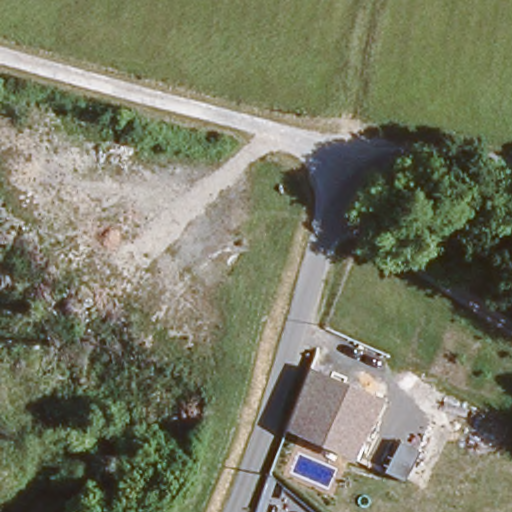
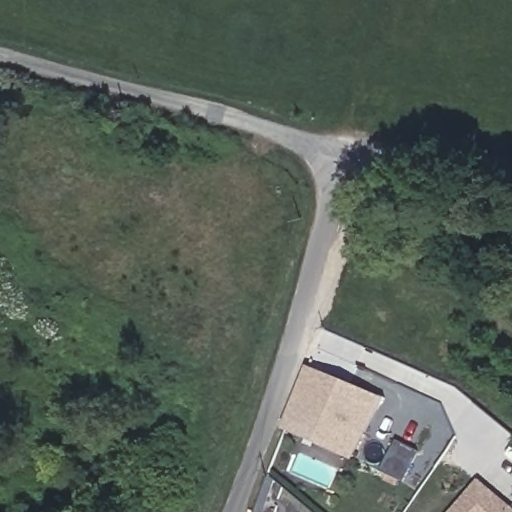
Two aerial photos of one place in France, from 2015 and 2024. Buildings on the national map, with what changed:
unchanged [(352,456),(282,423),(286,414),(305,365),(378,399),(352,456)]
new [(487,490),(512,511),(512,512),(449,512),(456,503),(475,481),(487,490)]
new [(510,490),(512,488),(512,492),(510,490)]

